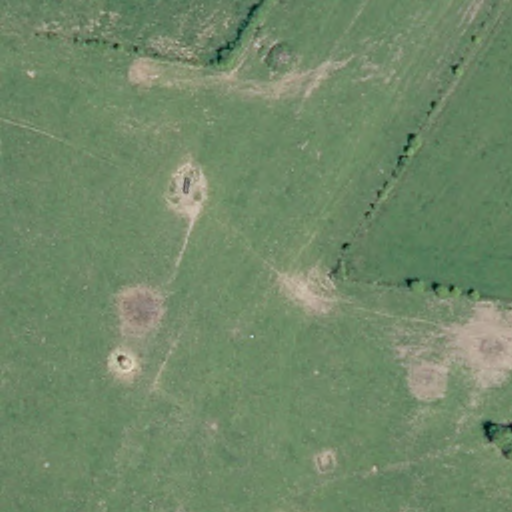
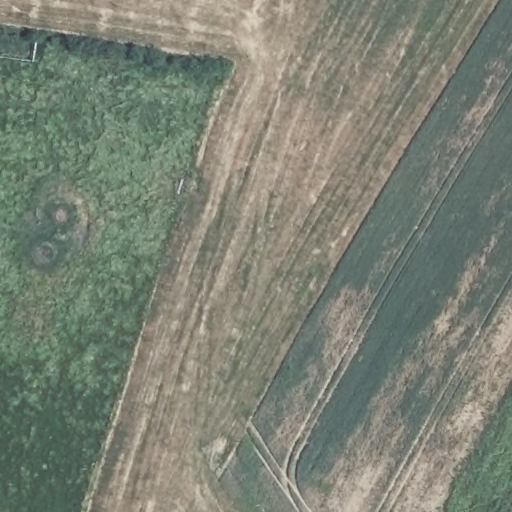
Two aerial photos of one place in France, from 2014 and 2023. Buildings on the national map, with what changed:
[]

